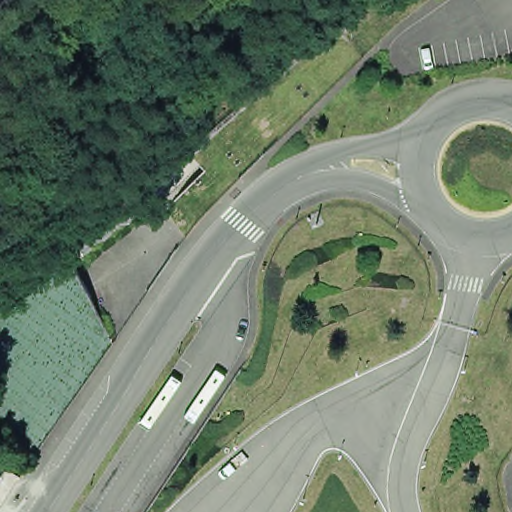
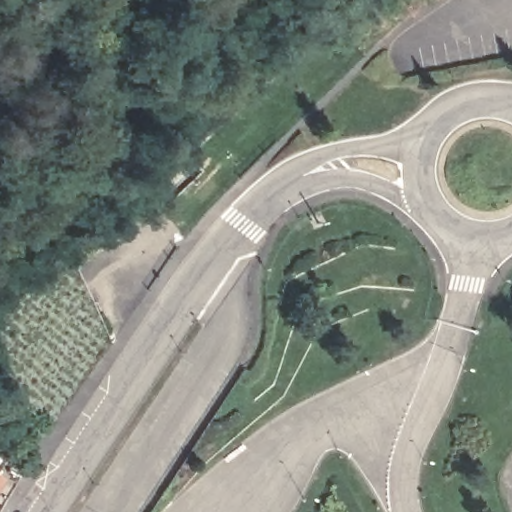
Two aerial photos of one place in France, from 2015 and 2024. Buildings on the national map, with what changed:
unchanged [(1,482),(0,484),(0,482),(1,482)]

